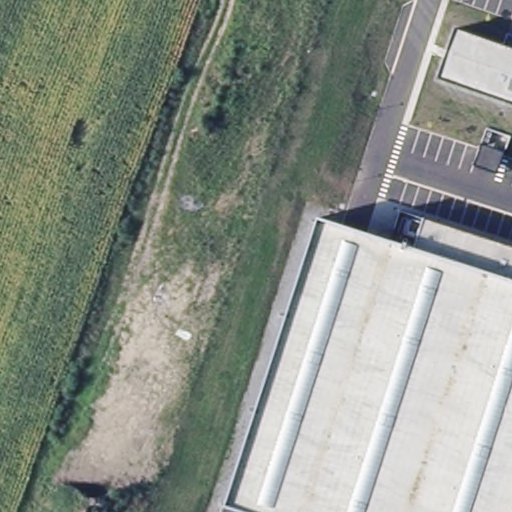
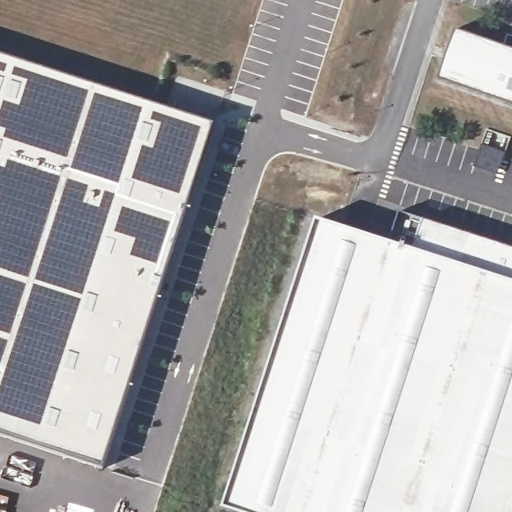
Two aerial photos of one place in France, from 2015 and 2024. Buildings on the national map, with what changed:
unchanged [(508,34),(512,35),(512,104),(438,79),(456,30),(502,46),(508,34)]
new [(214,122),(193,189),(174,242),(135,370),(103,465),(0,431),(0,54),(214,122)]
unchanged [(316,220),(388,241),(399,212),(422,219),(512,248),(512,512),(236,512),(224,508),(316,220)]

